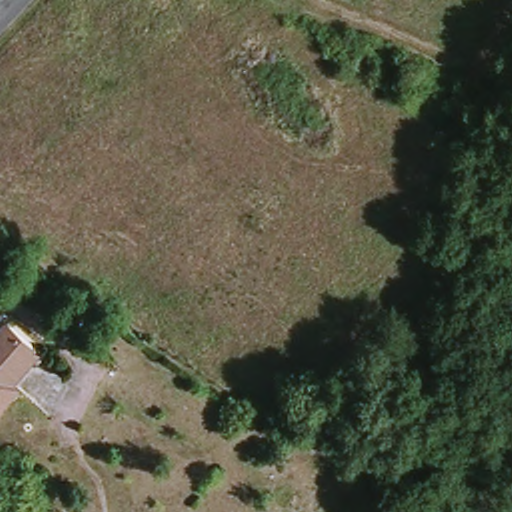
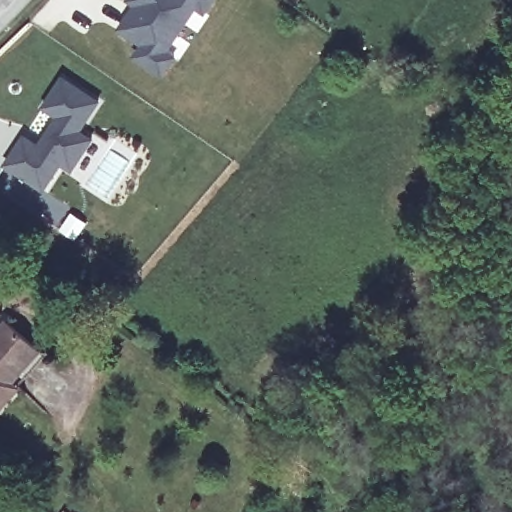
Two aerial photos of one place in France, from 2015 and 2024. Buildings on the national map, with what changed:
new [(124,1),(125,0),(216,0),(204,16),(198,11),(169,52),(178,56),(160,76),(130,58),(139,44),(117,29),(130,6),(124,1)]
new [(23,133),(37,141),(53,118),(39,110),(60,75),(99,101),(81,131),(94,140),(71,173),(61,166),(42,193),(3,164),(23,133)]
unchanged [(43,354),(0,400),(0,348),(17,331),(43,354)]

